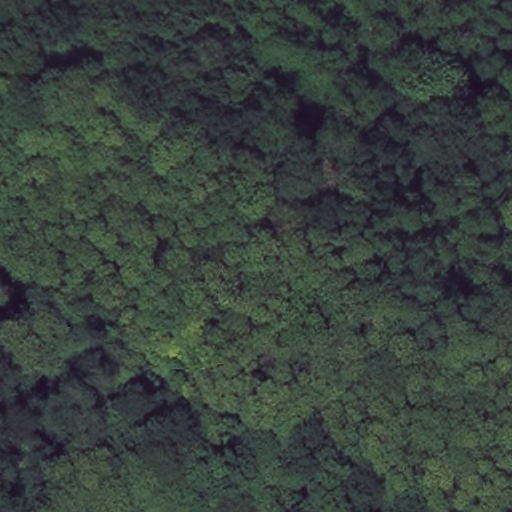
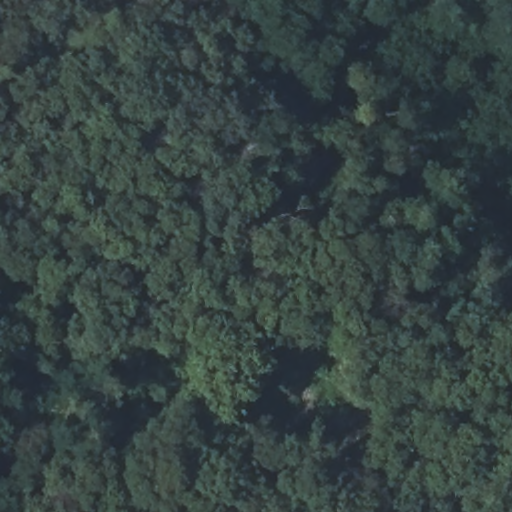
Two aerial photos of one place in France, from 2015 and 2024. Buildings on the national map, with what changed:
unchanged [(261,431),(244,422),(253,399),(273,412),(261,431)]

